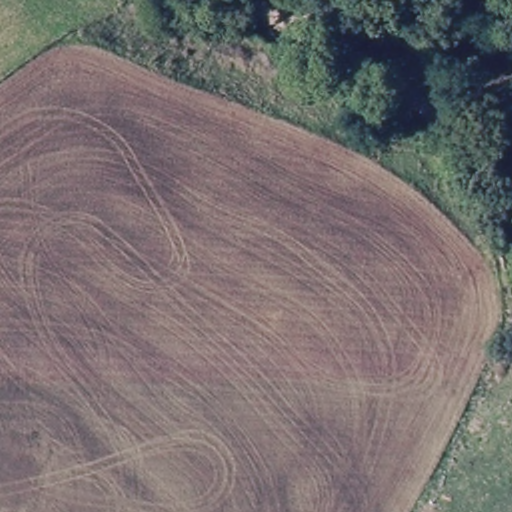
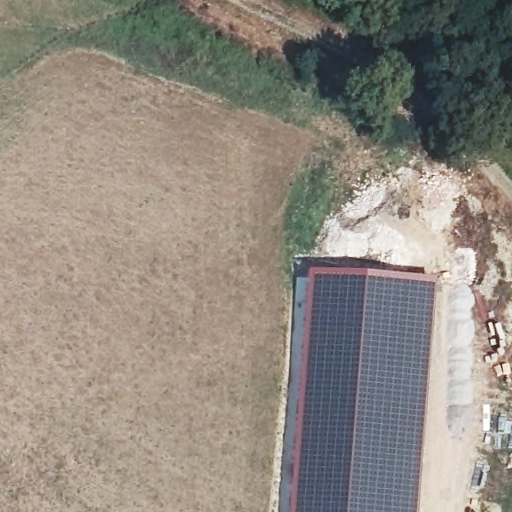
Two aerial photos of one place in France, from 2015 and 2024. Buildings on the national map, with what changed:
new [(292,466),(291,425),(286,425),(288,366),(295,275),(317,273),(353,275),(433,286),(428,379),(420,472),(417,512),(288,512),(292,466)]

